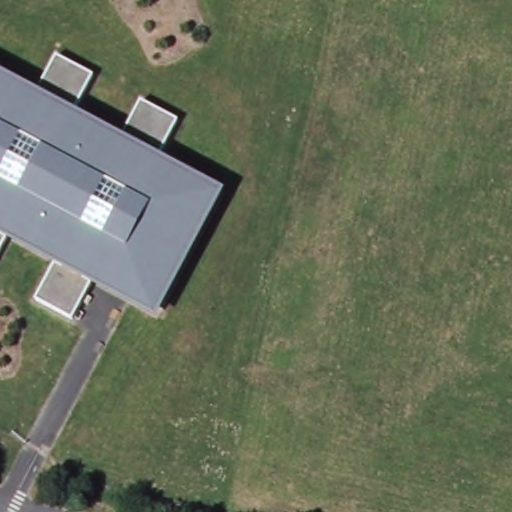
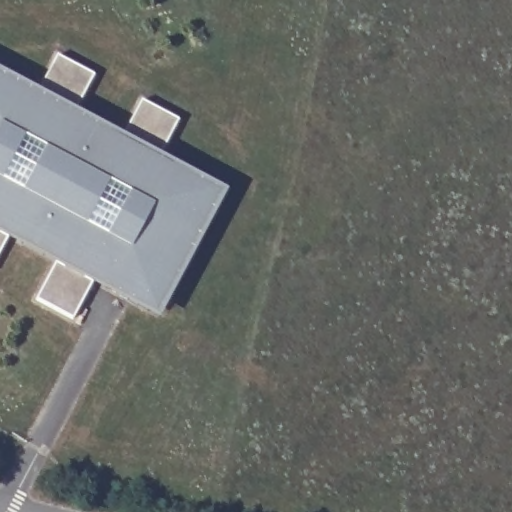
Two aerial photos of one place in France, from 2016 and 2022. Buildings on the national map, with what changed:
unchanged [(37,93),(58,57),(95,77),(77,115),(123,140),(141,101),(178,121),(158,159),(226,194),(157,323),(89,285),(69,326),(31,302),(48,263),(8,240),(0,253),(0,74),(37,93)]

